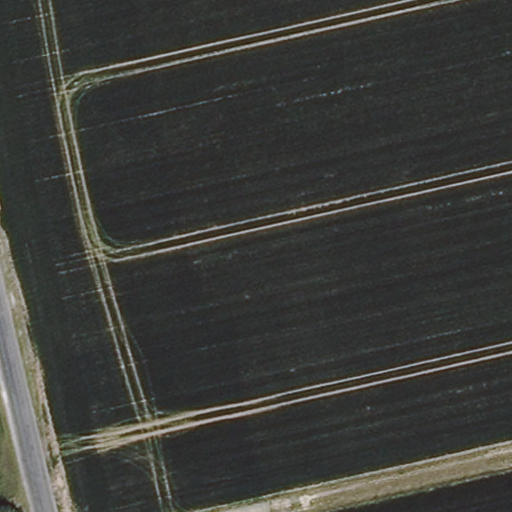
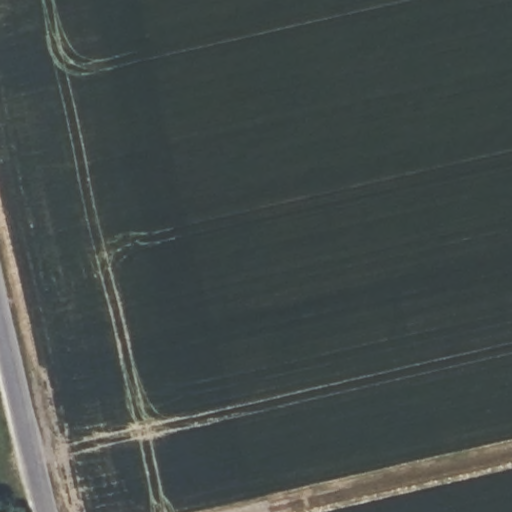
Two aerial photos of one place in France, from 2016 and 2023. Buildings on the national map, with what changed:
[]

